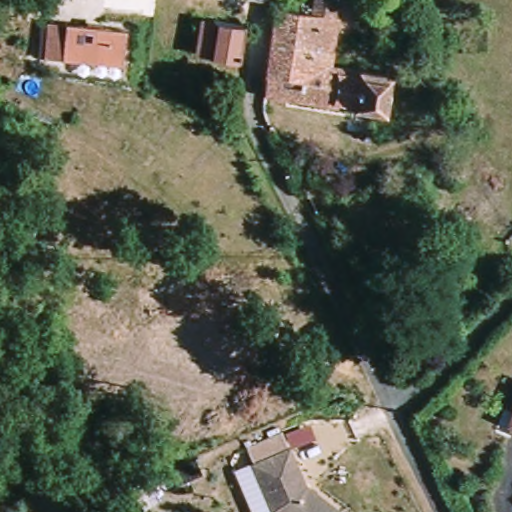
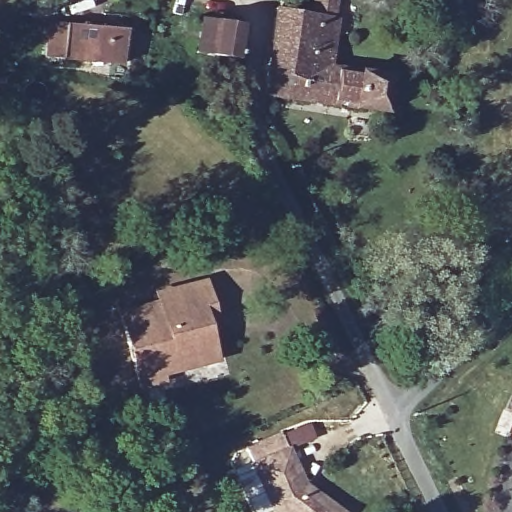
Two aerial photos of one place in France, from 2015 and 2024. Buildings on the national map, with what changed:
unchanged [(310,3),(314,4),(331,8),(329,14),(335,15),(327,67),(387,78),(380,116),(263,95),(274,7),(308,12),(310,3)]
unchanged [(219,19),(226,21),(225,26),(239,29),(234,63),(202,57),(194,54),(199,20),(209,22),(216,23),(219,19)]
unchanged [(67,62),(45,59),(50,23),(70,26),(126,33),(123,68),(67,62)]
new [(162,376),(165,383),(136,390),(117,310),(155,299),(153,292),(206,278),(219,330),(210,333),(217,362),(162,376)]
unchanged [(512,419),(512,422),(511,422),(512,419)]
unchanged [(299,485),(335,512),(272,512),(270,510),(250,466),(285,450),(299,485)]

